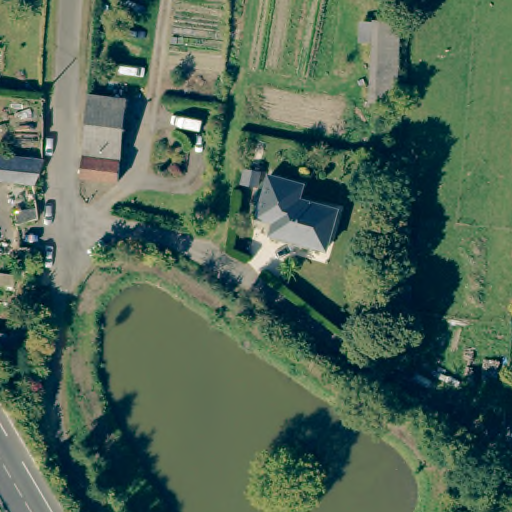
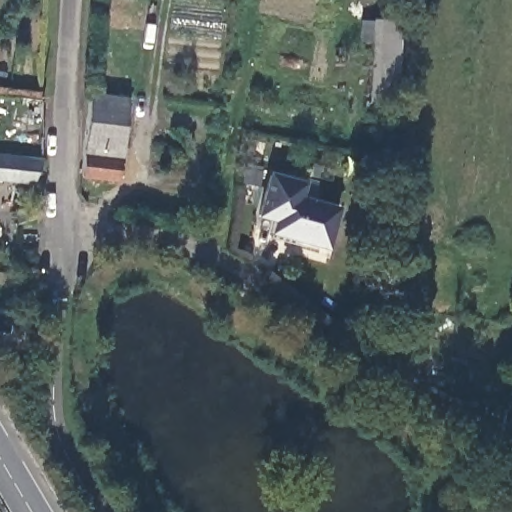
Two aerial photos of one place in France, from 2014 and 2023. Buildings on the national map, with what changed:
unchanged [(381,11),(382,0),(395,0),(394,12),(381,11)]
unchanged [(389,104),(364,101),(370,20),(395,21),(389,104)]
unchanged [(121,93),(113,176),(76,172),(84,90),(121,93)]
unchanged [(0,181),(0,157),(43,161),(34,184),(0,181)]
unchanged [(283,195),(274,224),(255,218),(269,172),(305,182),(300,200),(283,195)]
unchanged [(336,211),(325,248),(300,241),(301,238),(273,230),(283,195),(336,211)]
unchanged [(16,210),(37,207),(38,224),(17,227),(16,210)]
unchanged [(409,258),(414,259),(413,281),(394,281),(396,231),(409,232),(409,258)]
unchanged [(10,334),(23,336),(20,350),(8,347),(10,334)]

